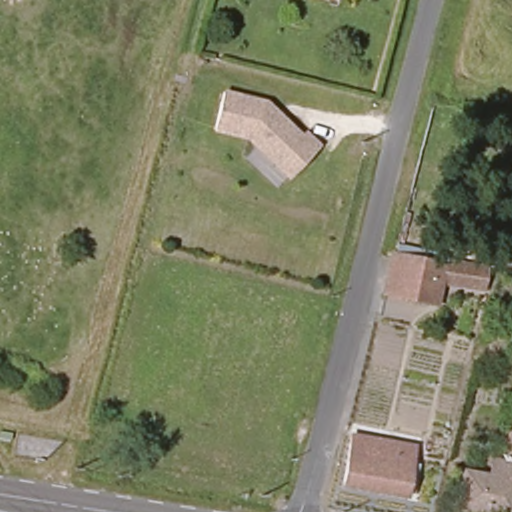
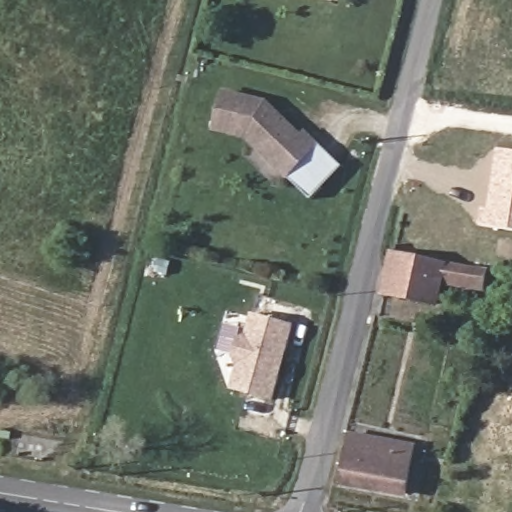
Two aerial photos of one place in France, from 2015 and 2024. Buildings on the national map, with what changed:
unchanged [(336,0),(334,4),(314,0),(336,0)]
unchanged [(265,97),(276,107),(302,132),(306,127),(319,140),(289,172),(246,132),(214,124),(222,94),(224,87),(265,97)]
new [(480,226),(483,209),(491,210),(499,149),(512,151),(512,231),(480,226)]
unchanged [(389,292),(397,252),(437,259),(428,300),(389,292)]
unchanged [(452,257),(492,266),(487,289),(444,284),(452,257)]
new [(298,328),(290,353),(289,360),(277,402),(237,390),(258,316),(298,328)]
unchanged [(508,451),(512,432),(512,452),(508,451)]
unchanged [(354,446),(359,447),(362,433),(403,441),(401,454),(415,457),(409,492),(348,481),(354,446)]
unchanged [(462,504),(468,471),(503,478),(512,480),(512,512),(505,512),(462,504)]

